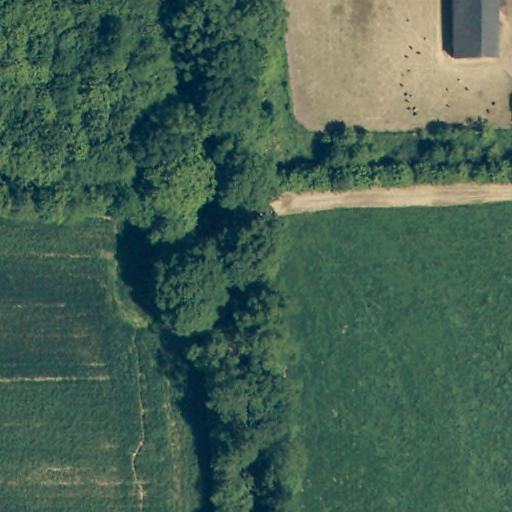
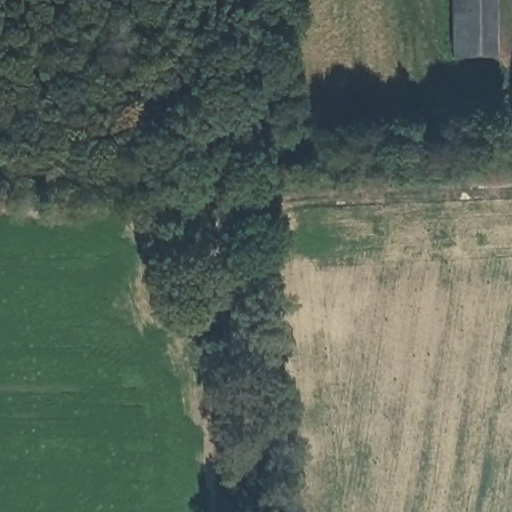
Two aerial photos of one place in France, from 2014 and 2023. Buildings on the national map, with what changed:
unchanged [(451,54),(451,0),(491,0),(492,52),(451,54)]

